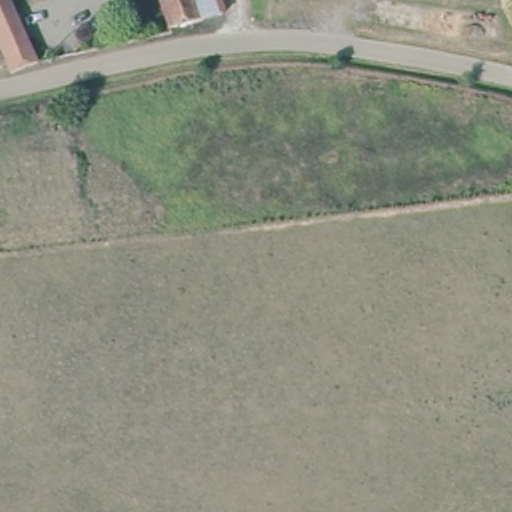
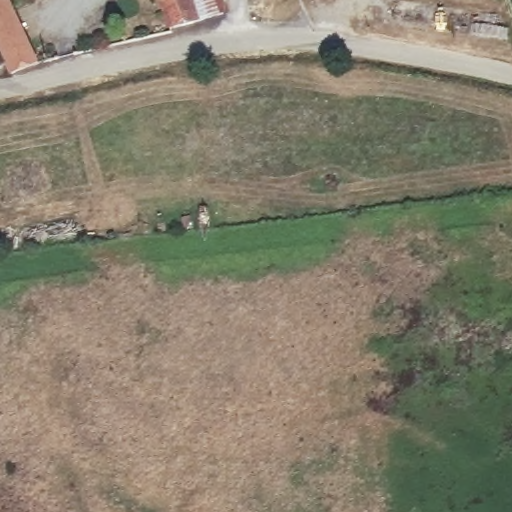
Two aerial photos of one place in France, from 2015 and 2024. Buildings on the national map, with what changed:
unchanged [(0,66),(0,0),(5,0),(32,71),(10,79),(5,64),(0,66)]
unchanged [(156,0),(221,0),(225,10),(166,28),(156,0)]

